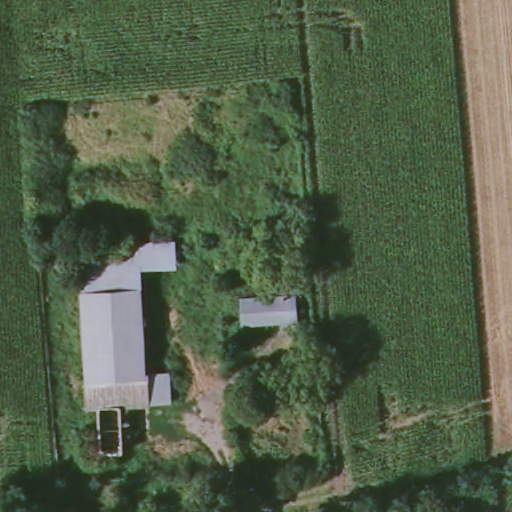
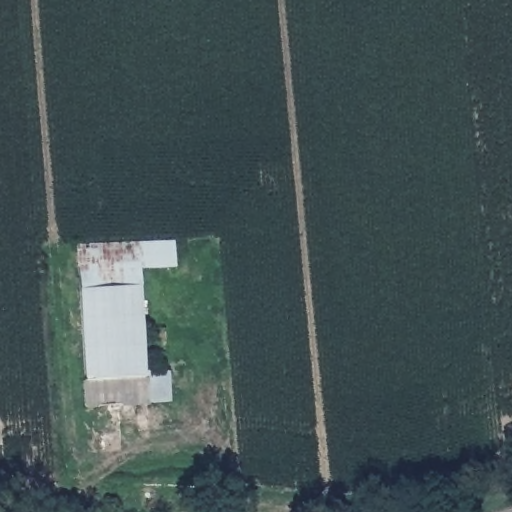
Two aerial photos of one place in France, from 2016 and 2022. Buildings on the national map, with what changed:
unchanged [(169,241),(171,267),(137,267),(137,281),(78,285),(78,244),(169,241)]
unchanged [(93,402),(81,402),(78,285),(137,281),(138,367),(161,367),(163,398),(119,402),(120,445),(95,447),(93,402)]
demolished [(236,297),(294,293),(294,322),(239,327),(236,297)]

